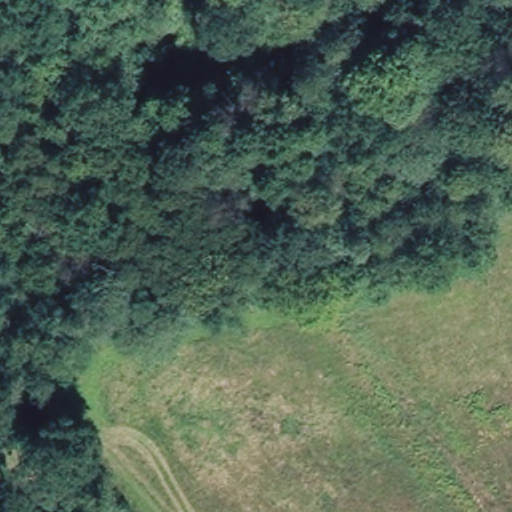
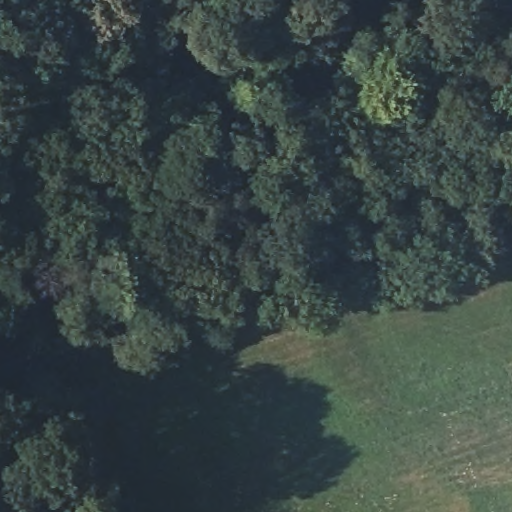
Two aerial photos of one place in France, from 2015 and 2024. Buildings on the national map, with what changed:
[]

